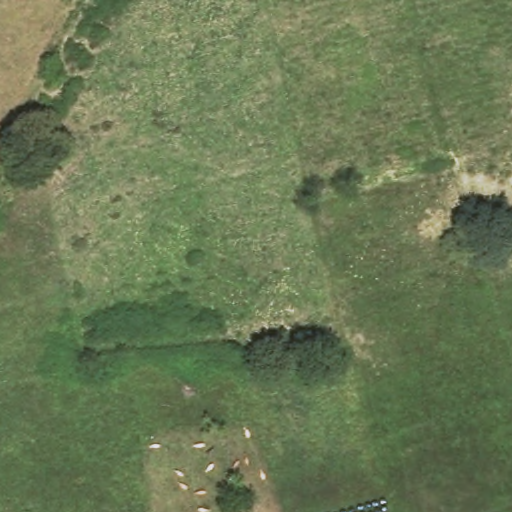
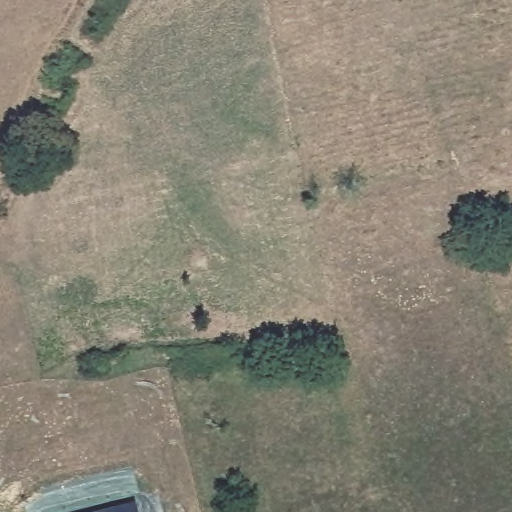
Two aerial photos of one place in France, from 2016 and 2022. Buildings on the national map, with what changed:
new [(135,502),(137,512),(93,512),(135,502)]

